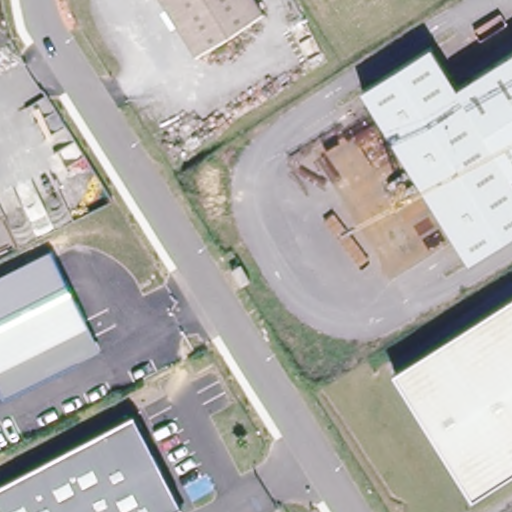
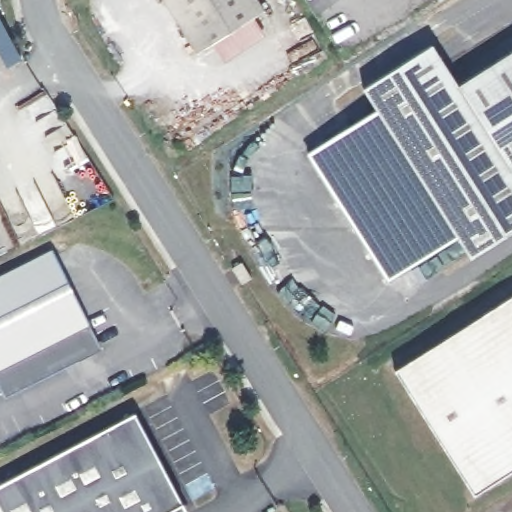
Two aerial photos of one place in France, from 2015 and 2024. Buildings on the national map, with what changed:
unchanged [(164,0),(255,0),(264,14),(199,55),(164,0)]
unchanged [(458,90),(512,57),(512,166),(507,170),(512,179),(512,235),(468,262),(363,92),(433,50),(458,90)]
new [(388,280),(307,154),(374,110),(453,239),(388,280)]
unchanged [(100,347),(4,395),(0,388),(0,276),(51,250),(100,347)]
unchanged [(512,471),(476,494),(397,369),(512,297),(512,471)]
unchanged [(173,512),(2,512),(0,509),(0,484),(137,414),(185,506),(173,512)]

